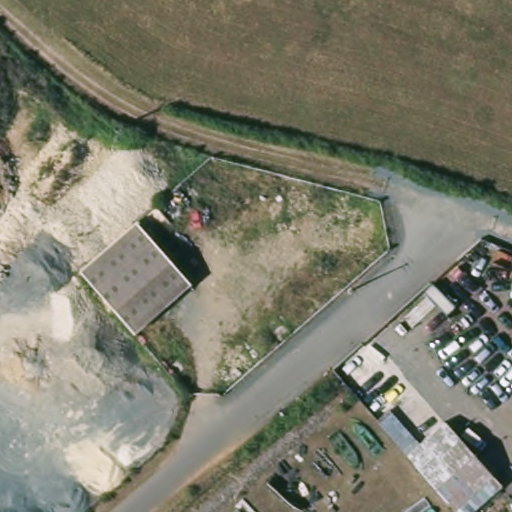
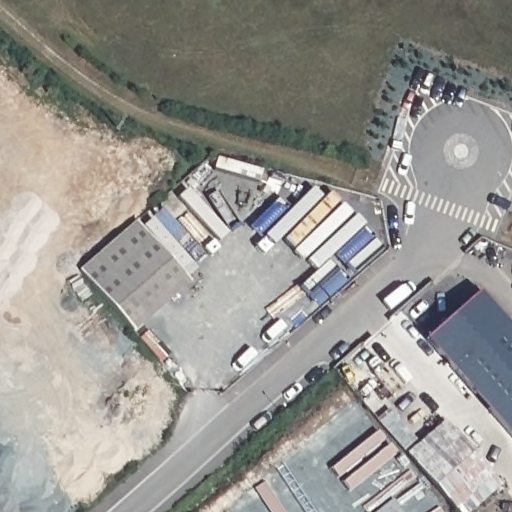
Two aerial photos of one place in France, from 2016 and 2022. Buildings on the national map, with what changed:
unchanged [(77,274),(136,225),(186,285),(129,335),(77,274)]
new [(512,338),(512,455),(416,347),(474,296),(512,338)]
unchanged [(470,512),(462,512),(437,485),(400,443),(437,410),(503,483),(470,512)]

